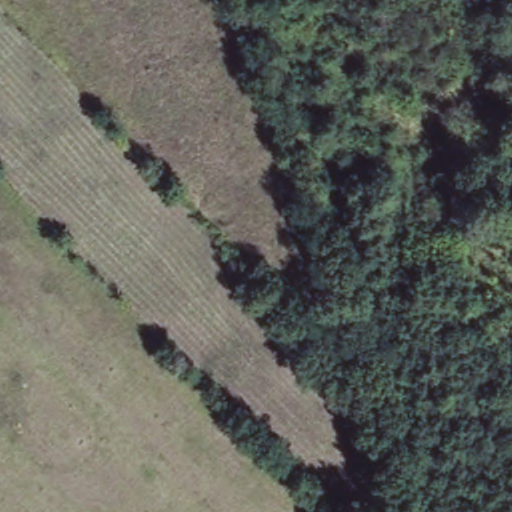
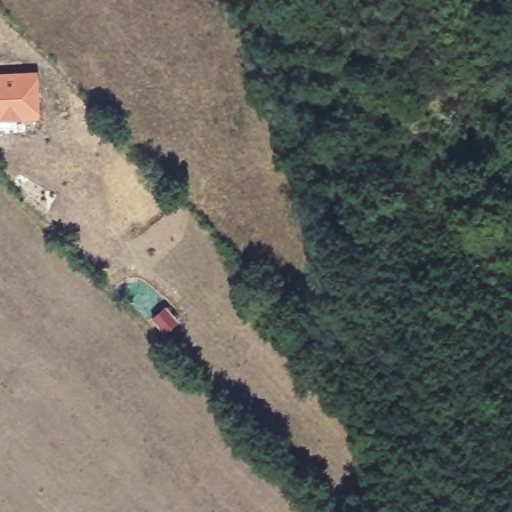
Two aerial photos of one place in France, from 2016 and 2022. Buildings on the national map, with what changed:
new [(36,71),(39,117),(0,120),(0,72),(36,71)]

